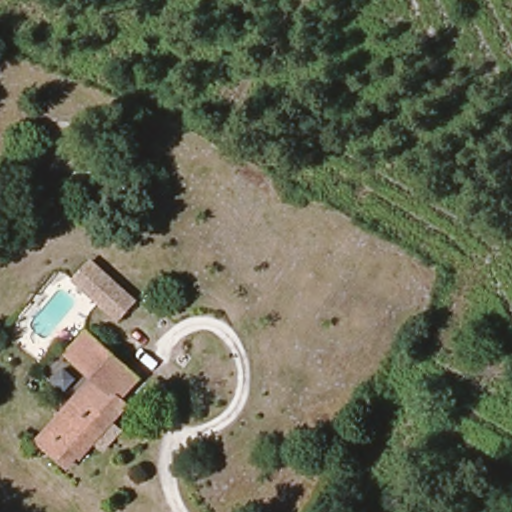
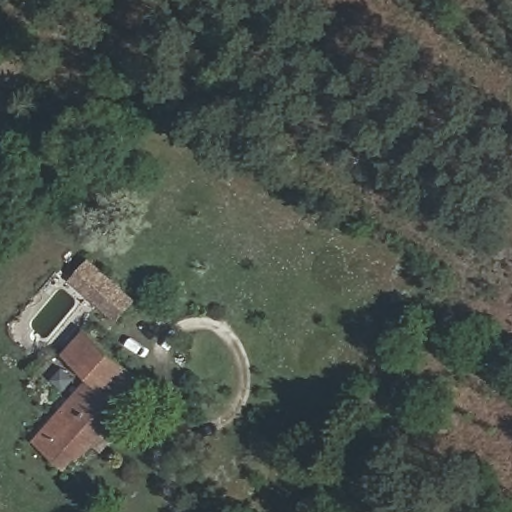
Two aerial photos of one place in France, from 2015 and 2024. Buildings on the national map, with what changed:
unchanged [(117,322),(74,283),(92,261),(139,300),(117,322)]
unchanged [(90,381),(66,355),(88,332),(142,380),(122,399),(132,406),(114,427),(121,434),(104,454),(95,446),(67,471),(35,441),(90,381)]

